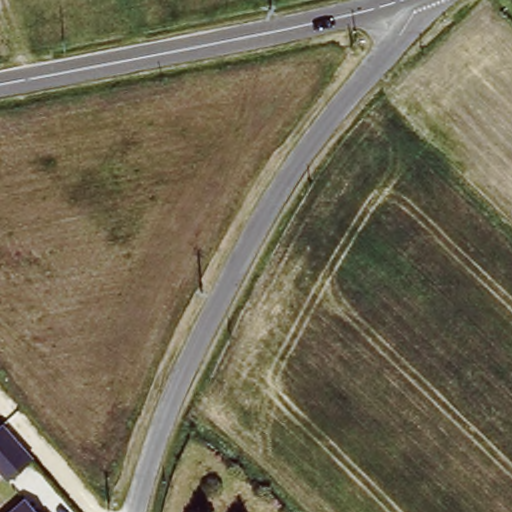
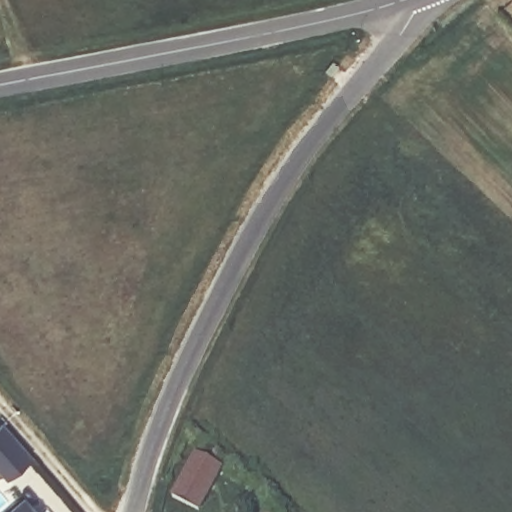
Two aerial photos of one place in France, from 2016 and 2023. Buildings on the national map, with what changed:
unchanged [(33,455),(6,480),(0,473),(0,423),(3,421),(33,455)]
new [(219,467),(198,512),(196,512),(170,500),(192,455),(219,467)]
unchanged [(6,512),(26,496),(39,512),(6,512)]

